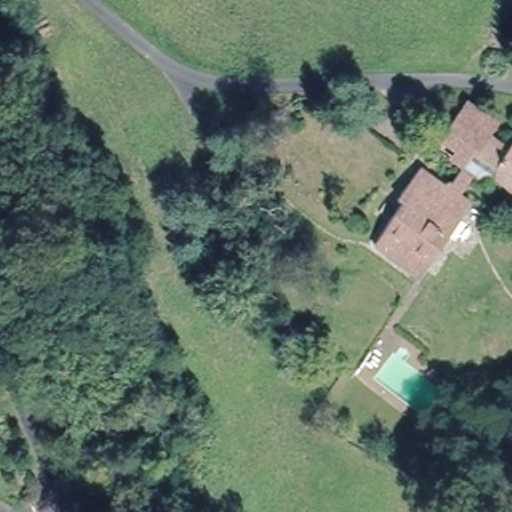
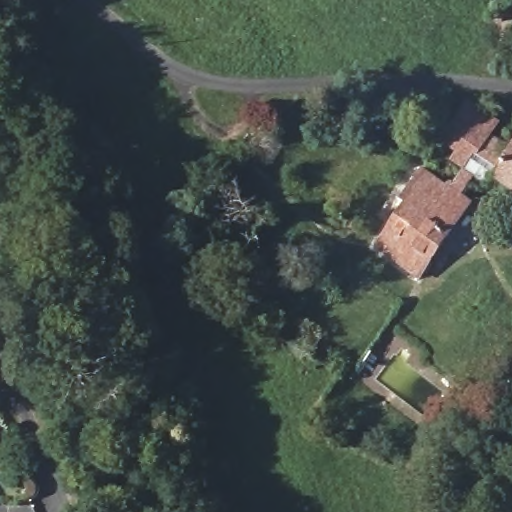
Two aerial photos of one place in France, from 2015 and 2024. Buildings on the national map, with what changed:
unchanged [(470,99),(496,117),(486,131),(512,148),(512,183),(490,168),(485,174),(476,168),(463,190),(472,197),(420,276),(376,241),(403,197),(400,194),(423,163),(446,179),(452,176),(454,178),(465,162),(456,156),(463,146),(445,134),(470,99)]

